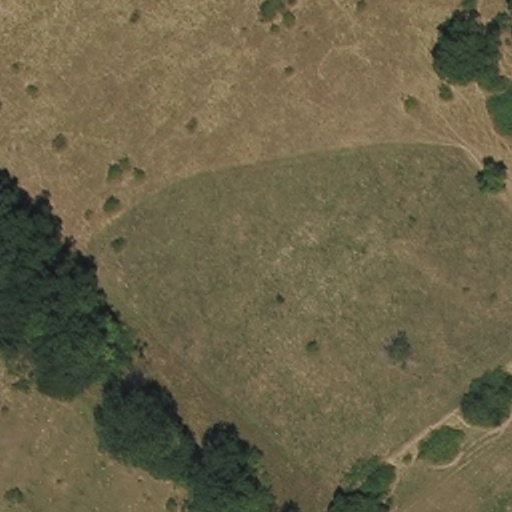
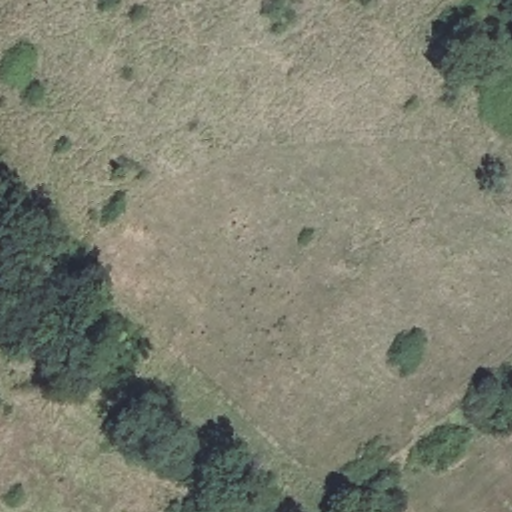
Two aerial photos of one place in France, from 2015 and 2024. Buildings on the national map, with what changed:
[]

